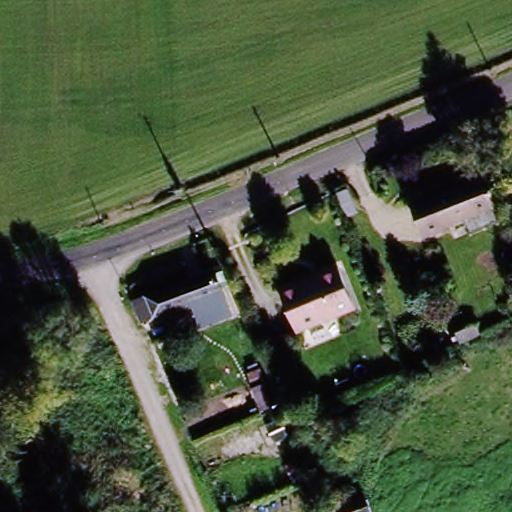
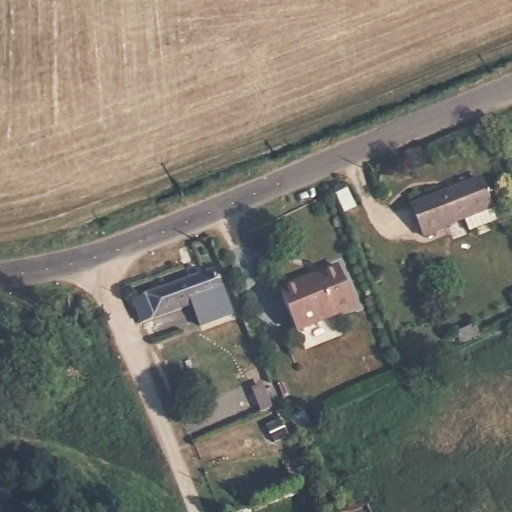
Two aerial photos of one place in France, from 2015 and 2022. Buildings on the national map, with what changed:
unchanged [(468,233),(462,218),(423,233),(410,202),(476,175),(489,207),(495,222),(468,233)]
unchanged [(340,263),(355,307),(305,329),(288,283),(340,263)]
unchanged [(143,315),(136,301),(137,300),(145,297),(215,269),(224,290),(155,316),(146,319),(143,315)]
unchanged [(272,409),(262,413),(253,392),(263,388),(272,409)]
unchanged [(358,493),(365,512),(326,512),(325,506),(358,493)]

